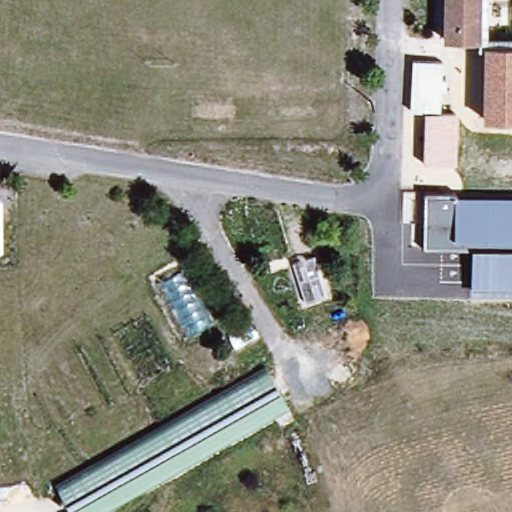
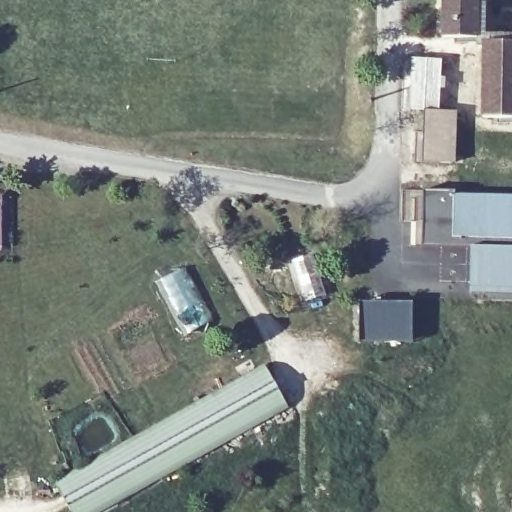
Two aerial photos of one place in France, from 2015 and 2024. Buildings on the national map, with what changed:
unchanged [(438,39),(440,0),(480,0),(480,35),(512,35),(512,44),(480,44),(479,39),(473,39),(438,39)]
unchanged [(480,44),(512,44),(512,119),(478,120),(480,44)]
unchanged [(426,163),(427,111),(407,111),(408,60),(441,62),(439,113),(455,114),(453,165),(426,163)]
unchanged [(512,294),(470,293),(471,248),(421,246),(422,192),(512,195),(512,294)]
new [(314,256),(327,295),(304,303),(292,262),(314,256)]
new [(412,342),(359,342),(359,302),(411,302),(412,342)]
unchanged [(268,370),(289,407),(93,512),(71,512),(55,481),(268,370)]

